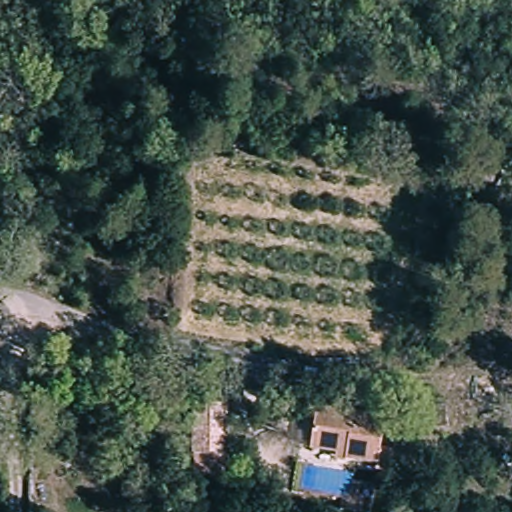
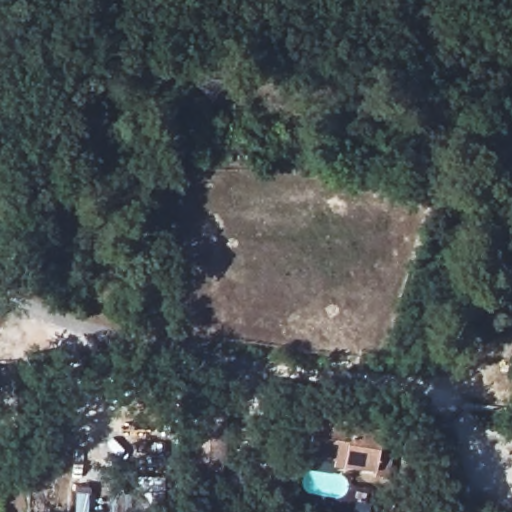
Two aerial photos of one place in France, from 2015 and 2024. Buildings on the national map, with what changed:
unchanged [(191,407),(221,408),(217,458),(188,457),(191,407)]
unchanged [(314,414),(383,424),(376,473),(344,468),(345,461),(309,455),(314,414)]

